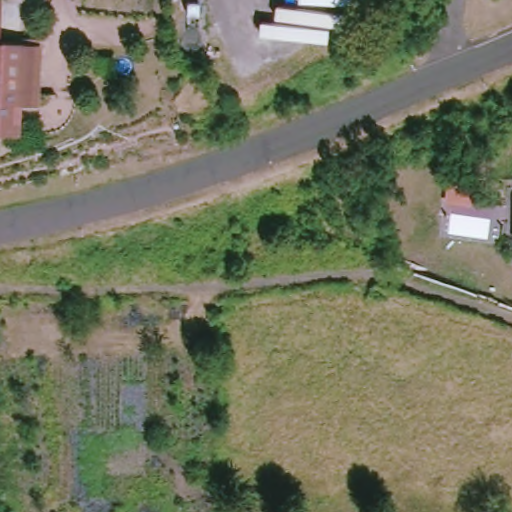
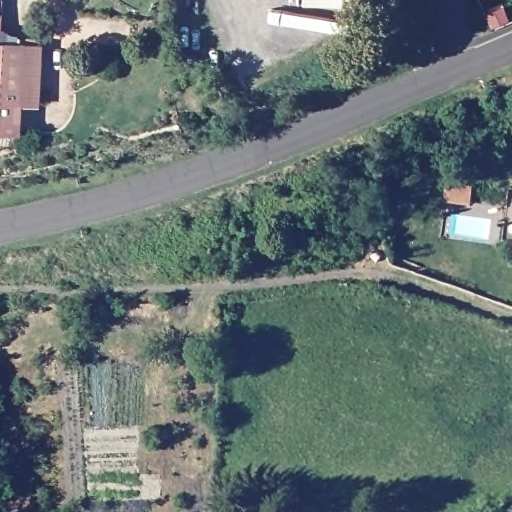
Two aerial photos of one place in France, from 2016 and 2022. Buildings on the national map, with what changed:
unchanged [(0,41),(0,1),(3,2),(1,42),(0,41)]
unchanged [(16,132),(0,131),(0,41),(20,42),(18,104),(16,132)]
unchanged [(38,44),(36,105),(18,104),(20,42),(38,44)]

